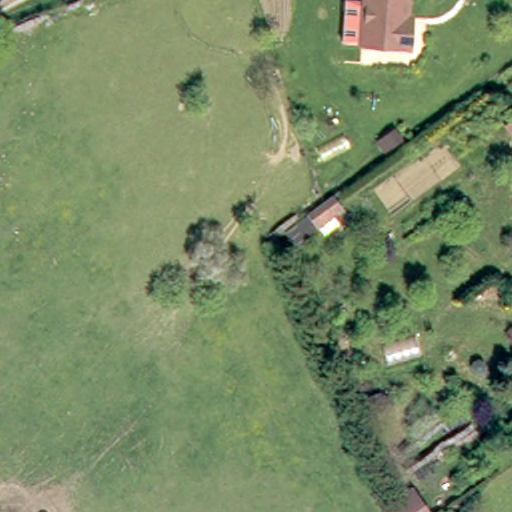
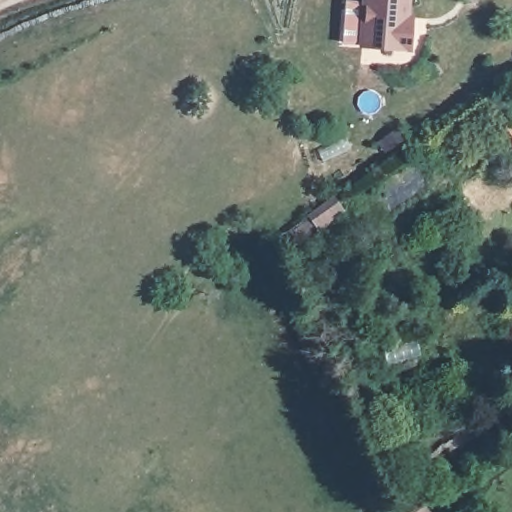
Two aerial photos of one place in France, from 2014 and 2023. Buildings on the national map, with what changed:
unchanged [(407,29),(405,50),(359,46),(362,0),(404,0),(402,29),(407,29)]
unchanged [(504,128),(512,122),(512,140),(504,128)]
unchanged [(320,232),(309,216),(335,198),(346,214),(320,232)]
unchanged [(378,511),(413,491),(427,512),(378,512),(378,511)]

